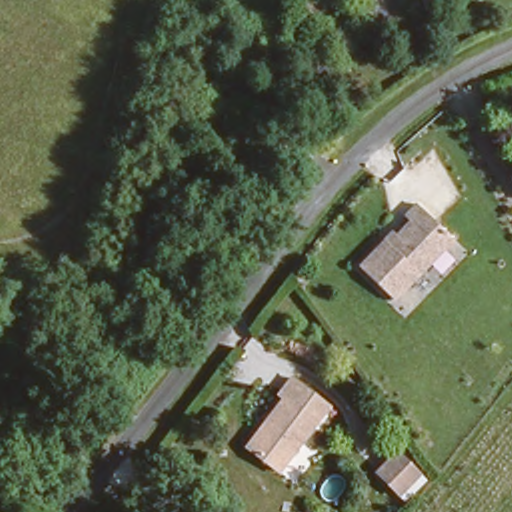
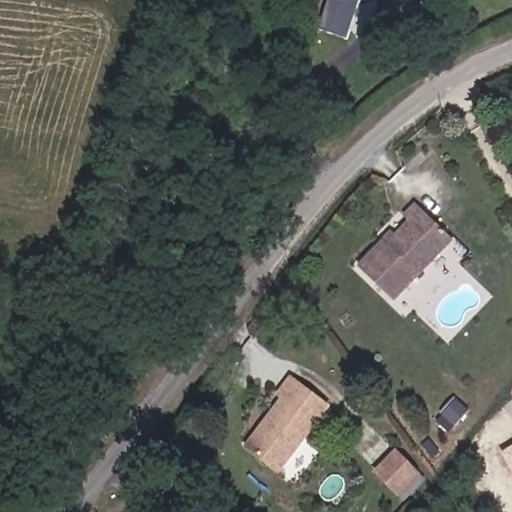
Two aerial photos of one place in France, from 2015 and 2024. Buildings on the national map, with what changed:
new [(345,38),(318,29),(328,0),(358,0),(345,38)]
unchanged [(387,301),(355,265),(382,240),(386,244),(409,223),(404,217),(417,205),(451,243),(387,301)]
unchanged [(237,452),(271,400),(266,396),(278,378),(317,404),(271,474),(237,452)]
unchanged [(414,476),(389,501),(359,472),(384,445),(414,476)]
new [(512,446),(512,470),(501,452),(512,446)]

